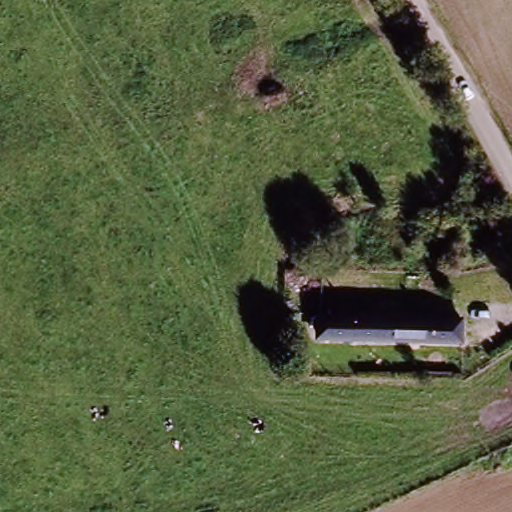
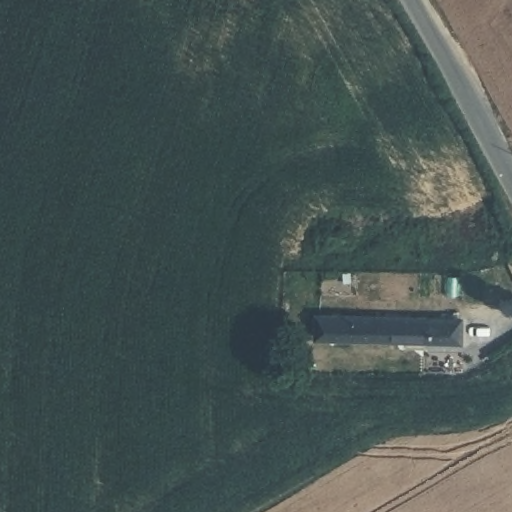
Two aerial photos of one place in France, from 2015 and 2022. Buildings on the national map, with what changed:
unchanged [(317,342),(319,317),(318,300),(319,296),(357,297),(355,317),(462,319),(462,344),(317,342)]

